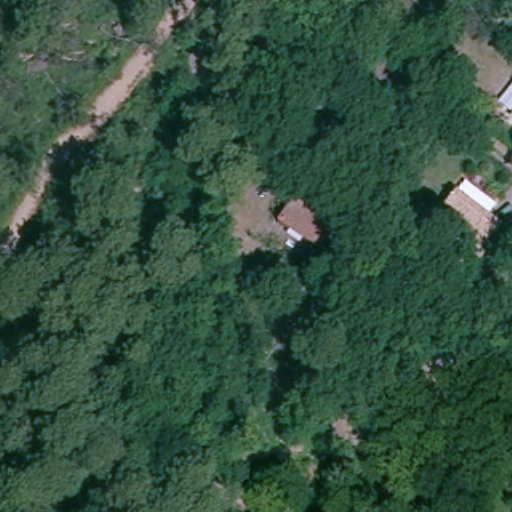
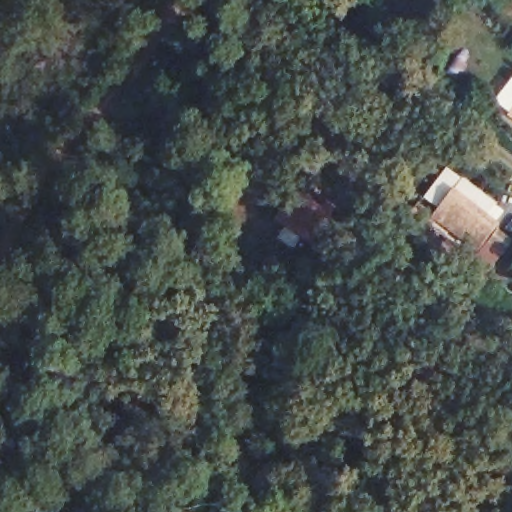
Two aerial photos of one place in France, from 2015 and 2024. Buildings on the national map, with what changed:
unchanged [(333,221),(318,244),(281,220),(295,196),(333,221)]
unchanged [(479,236),(466,227),(460,234),(440,219),(445,214),(441,210),(453,196),(489,224),(479,236)]
unchanged [(501,247),(492,239),(500,228),(509,237),(501,247)]

